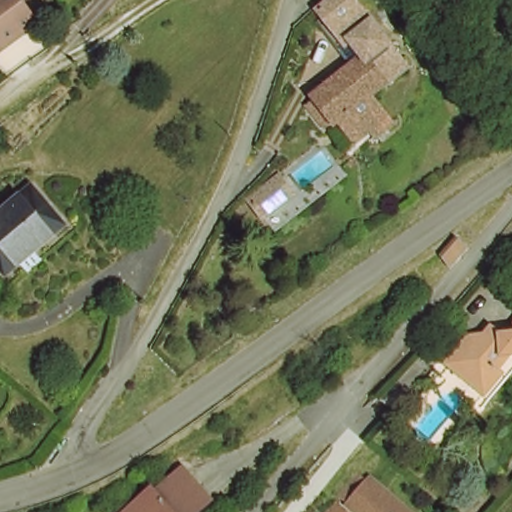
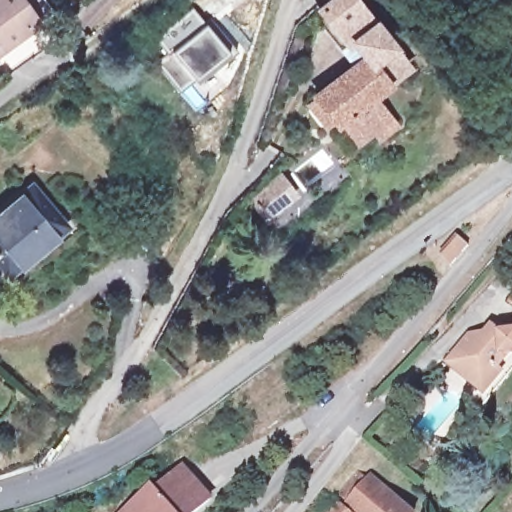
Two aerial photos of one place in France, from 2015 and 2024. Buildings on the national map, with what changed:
unchanged [(23,0),(37,20),(0,46),(0,0),(23,0)]
unchanged [(377,90),(397,114),(367,137),(349,114),(342,120),(320,91),(352,67),(357,72),(377,57),(360,35),(352,40),(326,5),(332,0),(364,0),(404,54),(410,61),(390,79),(377,90)]
new [(192,6),(230,51),(179,90),(157,62),(167,54),(155,39),(192,6)]
unchanged [(30,194),(60,226),(10,274),(0,263),(0,222),(30,194)]
unchanged [(451,367),(440,357),(450,346),(465,327),(475,328),(485,322),(495,328),(504,327),(512,318),(512,360),(482,394),(477,389),(451,367)]
unchanged [(154,489),(158,493),(187,468),(214,502),(202,512),(127,512),(154,489)]
unchanged [(350,498),(369,478),(378,487),(382,483),(413,512),(359,512),(357,510),(360,507),(350,498)]
unchanged [(343,507),(348,512),(339,512),(343,507)]

